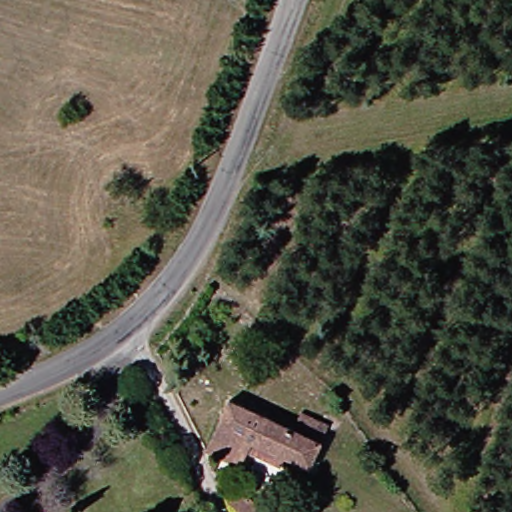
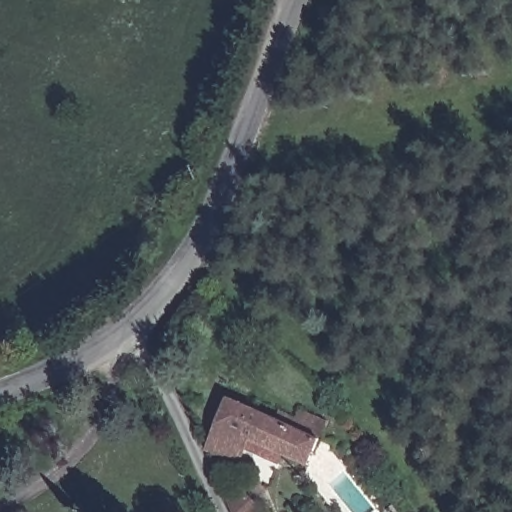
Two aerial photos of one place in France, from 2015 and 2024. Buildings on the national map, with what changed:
unchanged [(291,454),(286,466),(254,451),(247,465),(215,451),(237,401),(301,428),(308,411),(336,423),(328,440),(317,465),(291,454)]
unchanged [(268,510),(267,512),(238,512),(231,497),(242,483),(268,510)]

